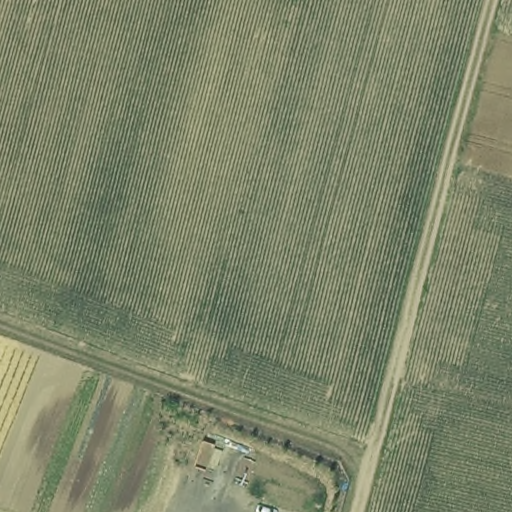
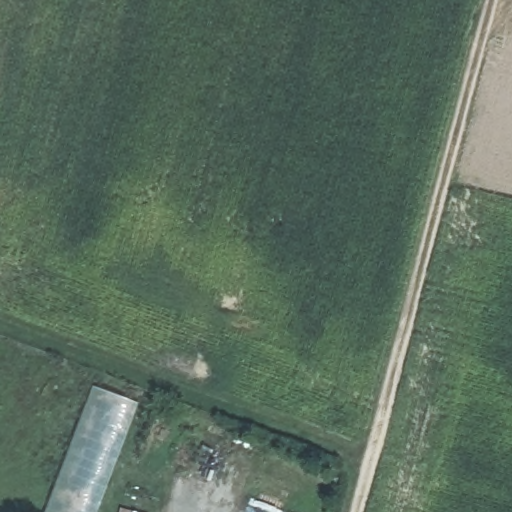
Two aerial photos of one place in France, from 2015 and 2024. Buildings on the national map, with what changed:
new [(99,512),(47,512),(92,386),(140,404),(99,512)]

